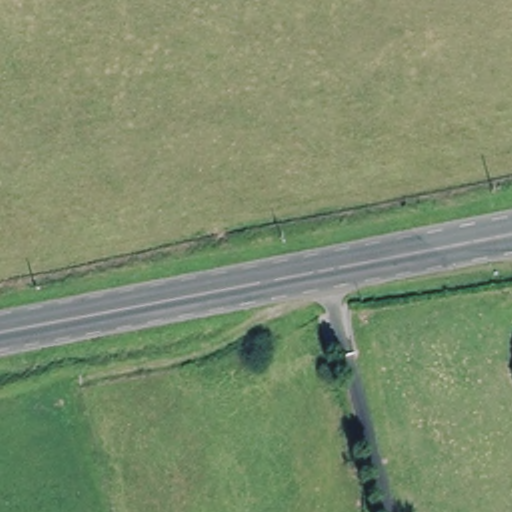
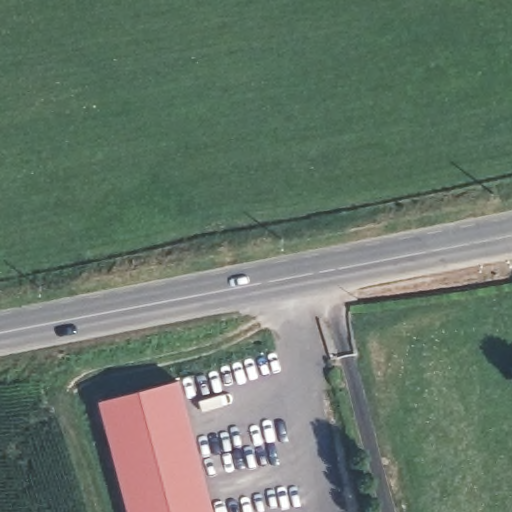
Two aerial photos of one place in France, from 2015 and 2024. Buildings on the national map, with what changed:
new [(180,380),(214,512),(127,512),(98,401),(180,380)]

